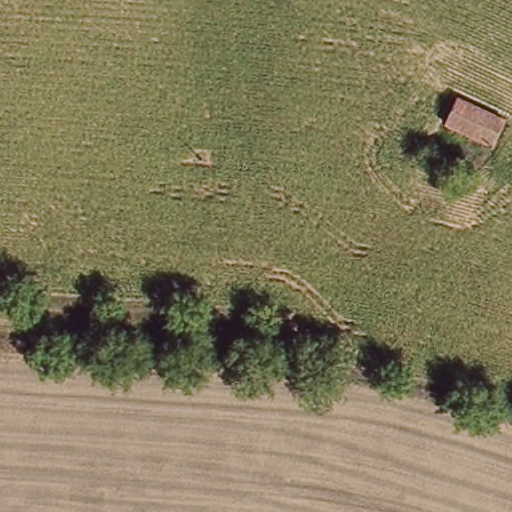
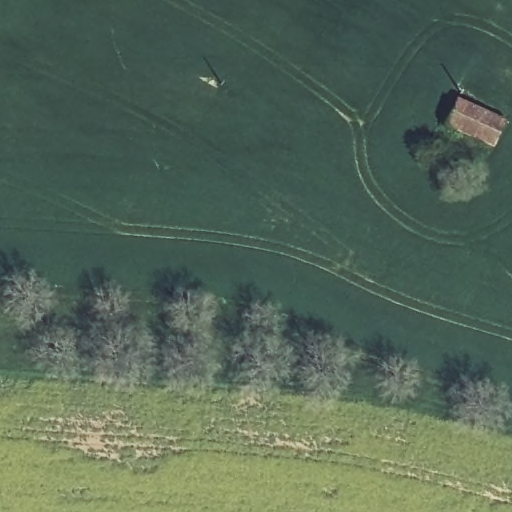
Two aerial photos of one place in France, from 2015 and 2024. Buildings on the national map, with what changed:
unchanged [(447,127),(461,97),(509,120),(495,150),(447,127)]

